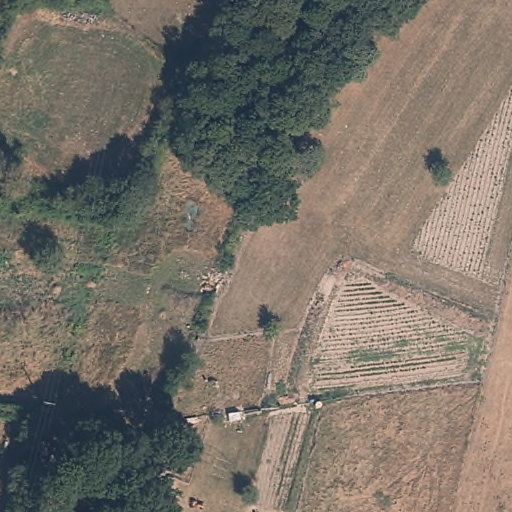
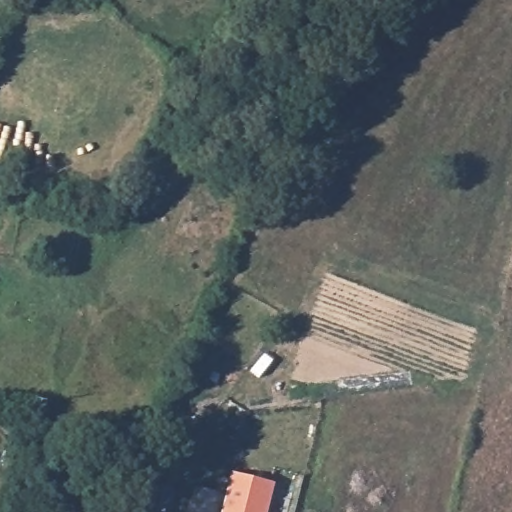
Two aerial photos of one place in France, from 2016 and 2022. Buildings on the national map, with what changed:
new [(233,472),(276,483),(269,512),(223,512),(233,472)]

